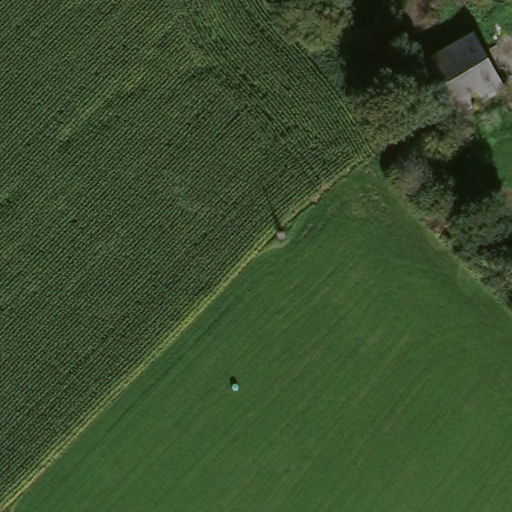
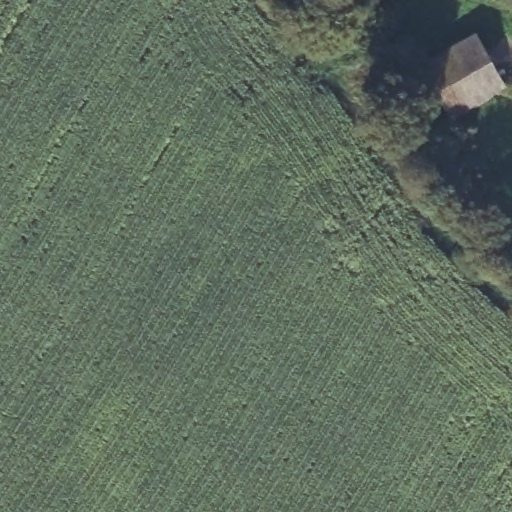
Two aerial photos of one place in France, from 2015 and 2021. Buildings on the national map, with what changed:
unchanged [(474,36),(479,44),(504,88),(451,120),(420,67),(474,36)]

